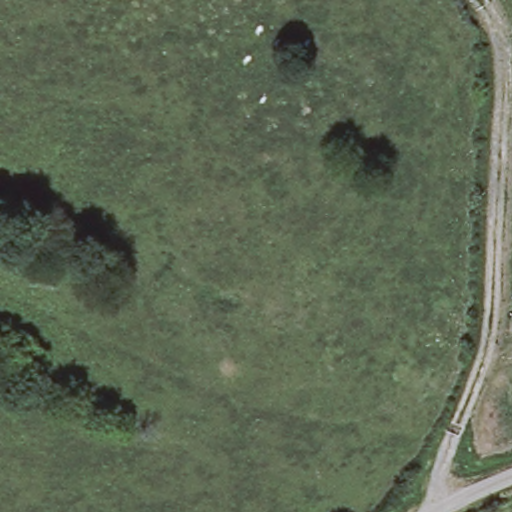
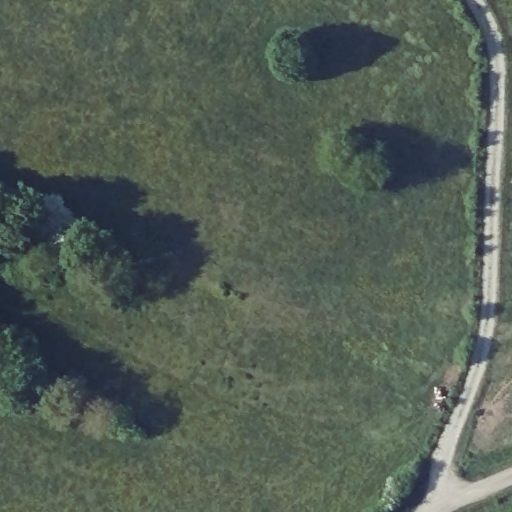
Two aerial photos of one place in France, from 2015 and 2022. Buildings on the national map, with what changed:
[]

